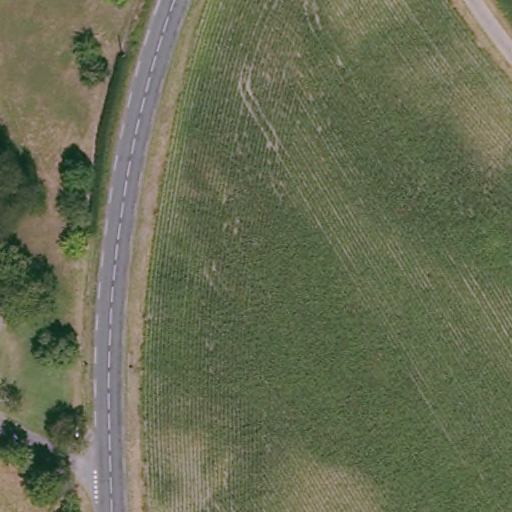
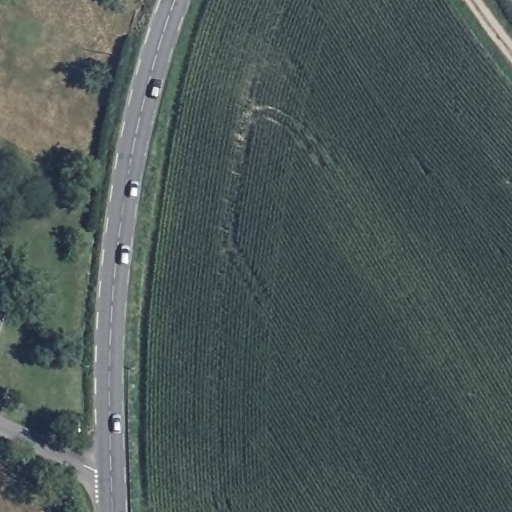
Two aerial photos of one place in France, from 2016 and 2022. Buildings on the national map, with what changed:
unchanged [(0,318),(1,319),(0,321),(0,318)]

